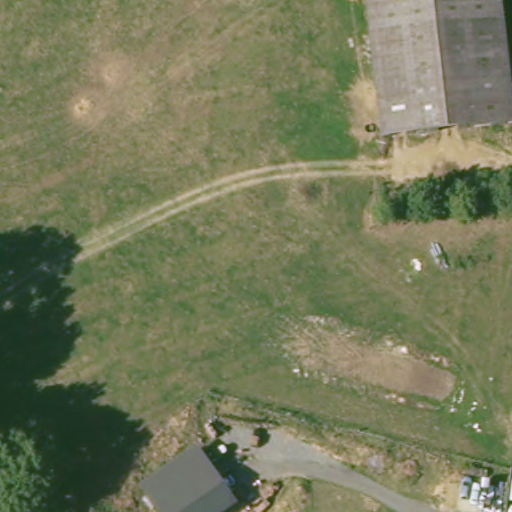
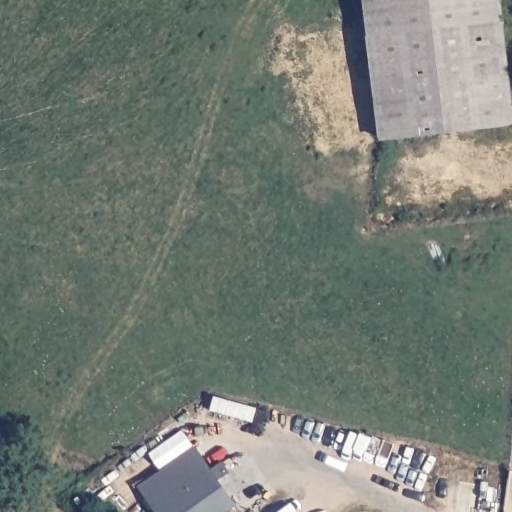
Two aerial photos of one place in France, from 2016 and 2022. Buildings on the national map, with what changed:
unchanged [(375,0),(506,0),(512,49),(512,129),(392,141),(375,0)]
unchanged [(201,450),(239,508),(233,512),(163,512),(146,488),(201,450)]

